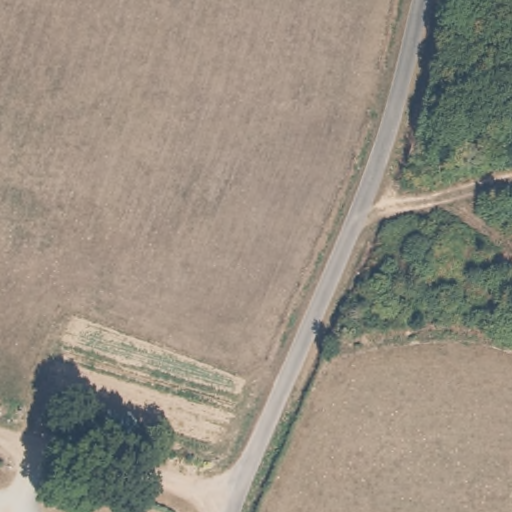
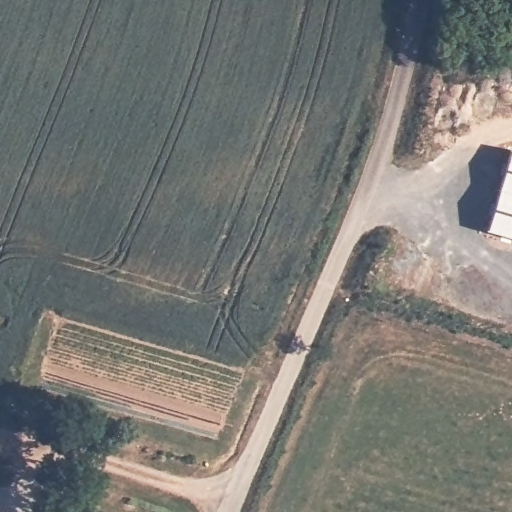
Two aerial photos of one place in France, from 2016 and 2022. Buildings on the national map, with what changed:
new [(512,238),(488,231),(511,150),(512,150),(512,238)]

